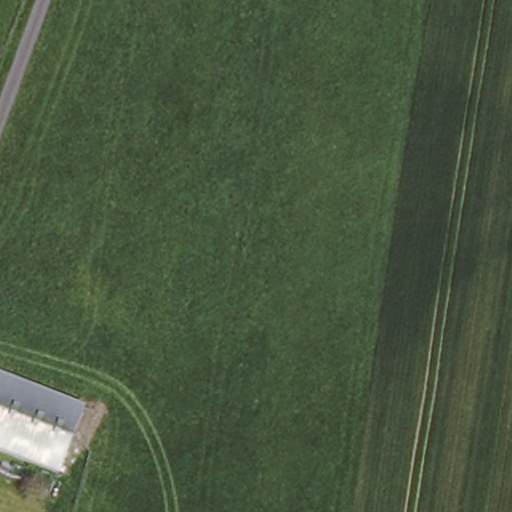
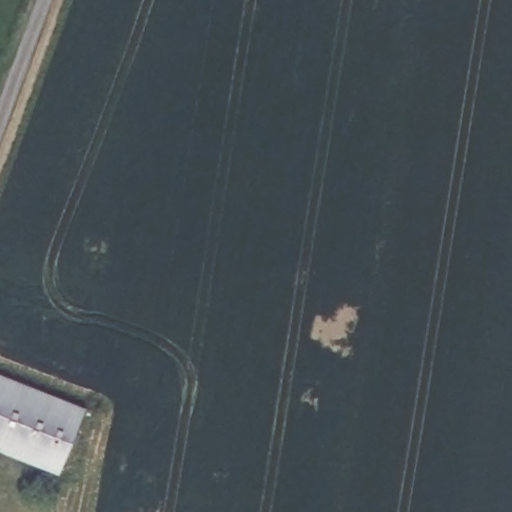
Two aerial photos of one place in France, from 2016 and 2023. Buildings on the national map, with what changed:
unchanged [(87,408),(60,474),(0,450),(0,374),(87,408)]

